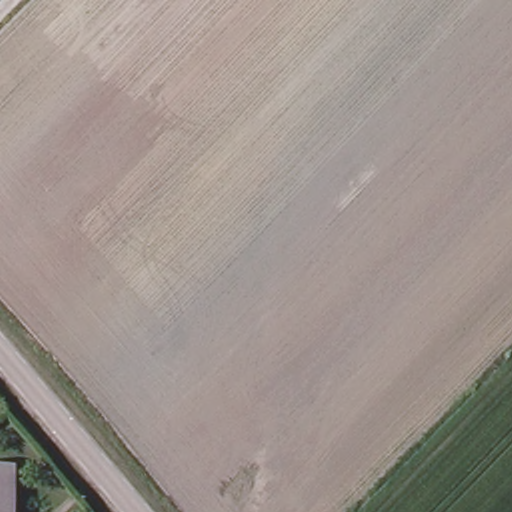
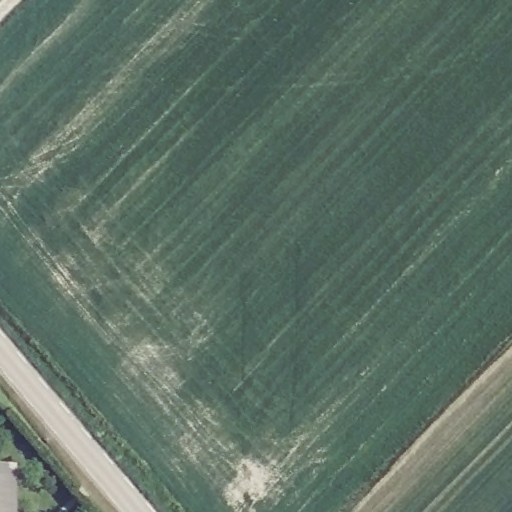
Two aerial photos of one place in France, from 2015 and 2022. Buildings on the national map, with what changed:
unchanged [(8,512),(0,512),(0,469),(10,469),(8,512)]

